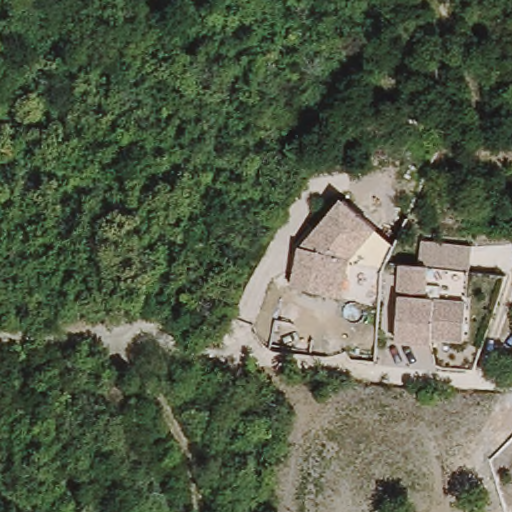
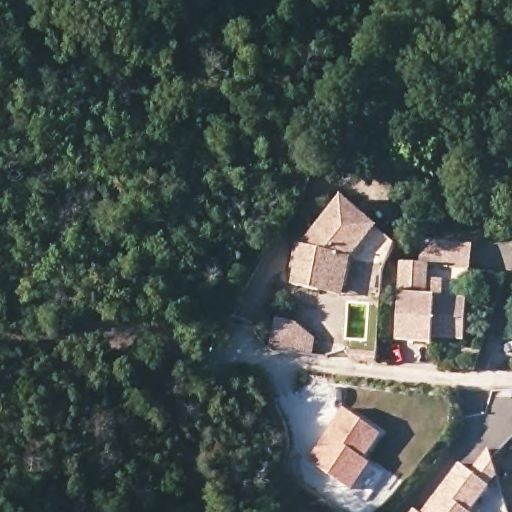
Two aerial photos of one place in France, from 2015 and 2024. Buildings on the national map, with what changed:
unchanged [(308,297),(290,291),(293,280),(303,246),(325,224),(350,203),(383,239),(347,270),(339,296),(335,305),(317,300),(308,297)]
unchanged [(396,300),(398,266),(418,267),(420,242),(467,247),(467,269),(425,270),(423,300),(462,302),(460,344),(426,344),(393,343),(396,300)]
new [(296,322),(317,338),(313,355),(270,348),(276,318),(296,322)]
new [(318,443),(342,410),(378,436),(360,460),(366,465),(347,491),(312,465),(305,461),(318,443)]
new [(500,460),(507,487),(495,491),(475,512),(425,512),(469,466),(478,475),(500,460)]
new [(425,512),(413,512),(418,506),(425,512)]

